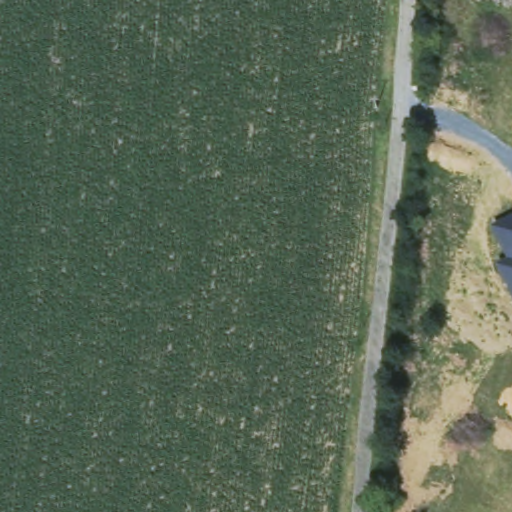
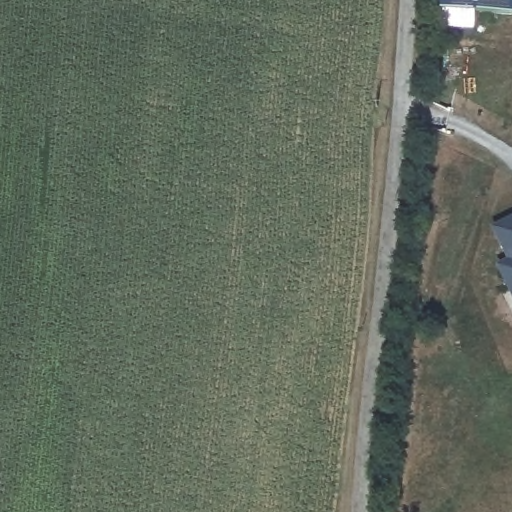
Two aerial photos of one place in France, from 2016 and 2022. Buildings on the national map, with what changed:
unchanged [(495,268),(506,262),(491,229),(512,217),(512,300),(495,268)]

